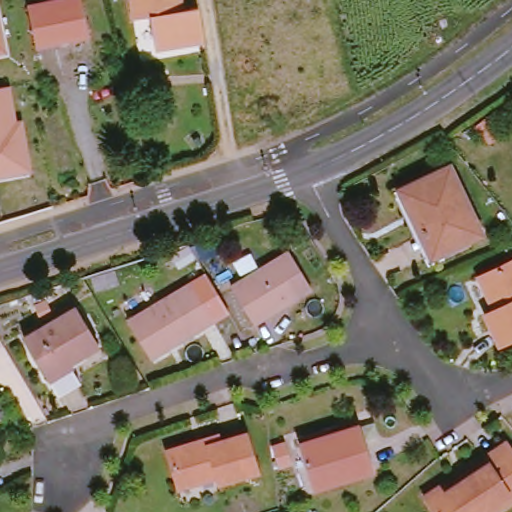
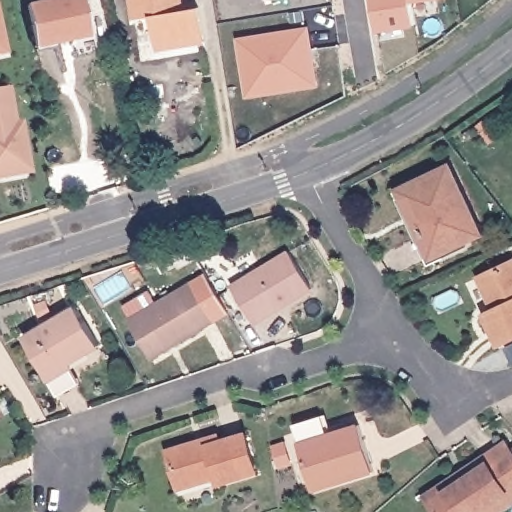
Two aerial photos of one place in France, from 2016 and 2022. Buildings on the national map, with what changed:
unchanged [(33,11),(86,0),(94,41),(42,52),(33,11)]
unchanged [(158,54),(157,47),(155,34),(159,29),(157,20),(139,23),(137,23),(133,1),(135,1),(138,0),(183,0),(185,15),(202,12),(204,24),(206,40),(207,47),(158,54)]
new [(415,5),(420,28),(382,35),(376,0),(445,0),(415,5)]
unchanged [(9,49),(0,51),(0,14),(9,49)]
new [(242,83),(235,42),(305,30),(314,86),(281,92),(244,98),(242,83)]
unchanged [(0,183),(0,94),(14,92),(20,129),(27,127),(28,134),(35,177),(11,181),(3,182),(0,183)]
unchanged [(440,258),(407,191),(450,171),(482,239),(440,258)]
unchanged [(228,297),(237,292),(295,257),(317,294),(258,329),(250,333),(228,297)]
unchanged [(512,342),(504,346),(490,315),(499,310),(483,277),(512,264),(512,342)]
unchanged [(128,322),(192,283),(214,321),(150,358),(128,322)]
unchanged [(52,382),(29,343),(82,312),(104,351),(52,382)]
unchanged [(305,448),(365,430),(379,476),(319,495),(305,448)]
unchanged [(262,476),(224,487),(222,481),(184,492),(173,455),(223,440),(225,446),(251,438),(262,476)]
unchanged [(485,467),(500,457),(512,449),(512,512),(495,512),(494,512),(450,512),(445,503),(440,497),(455,487),(473,476),(485,467)]

